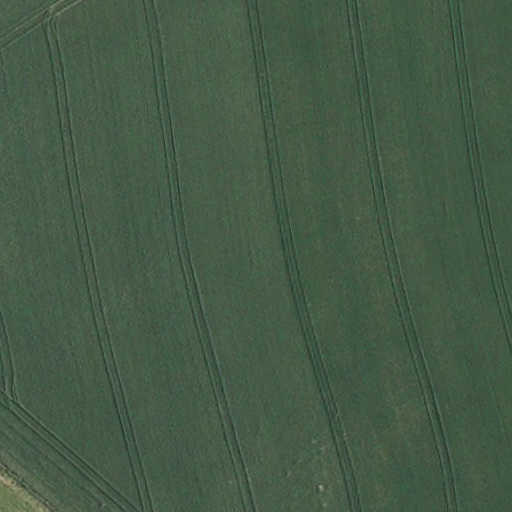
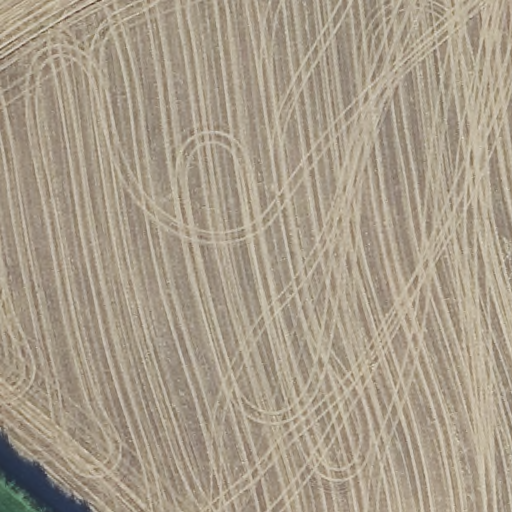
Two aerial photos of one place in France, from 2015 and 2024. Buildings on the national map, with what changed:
[]

